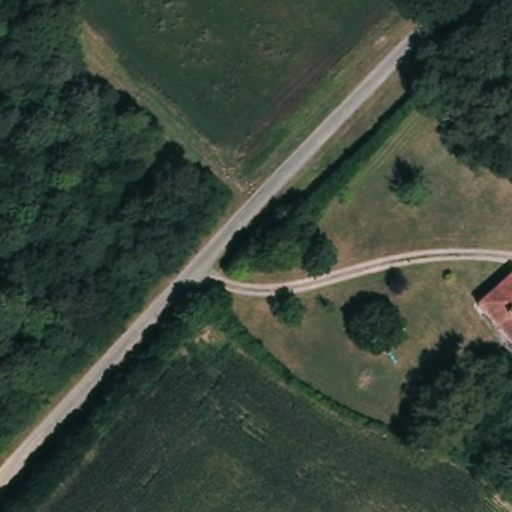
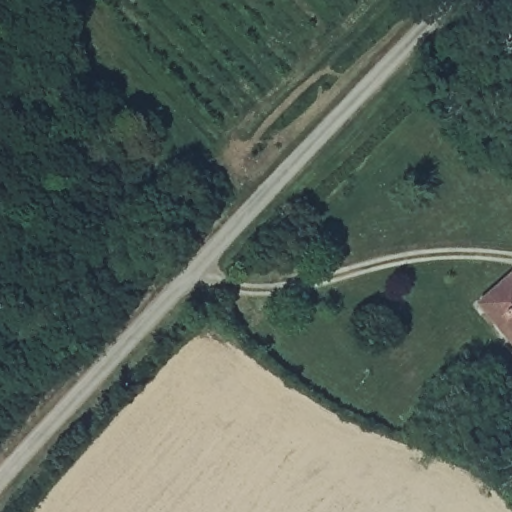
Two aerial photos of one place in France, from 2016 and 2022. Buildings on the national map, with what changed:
unchanged [(512,275),(512,352),(474,307),(512,275)]
unchanged [(460,443),(443,422),(457,408),(464,414),(476,406),(487,420),(468,438),(460,443)]

